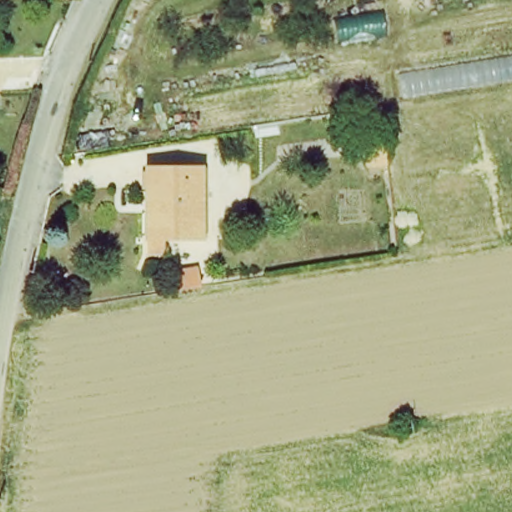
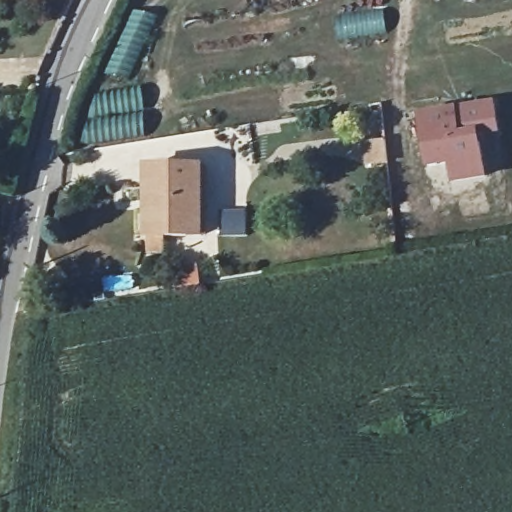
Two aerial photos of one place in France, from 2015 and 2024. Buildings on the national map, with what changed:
new [(451,184),(448,167),(427,170),(419,114),(494,104),(499,135),(479,138),(487,179),(451,184)]
unchanged [(143,163),(196,161),(198,231),(163,233),(164,248),(146,249),(145,233),(143,188),(143,163)]

